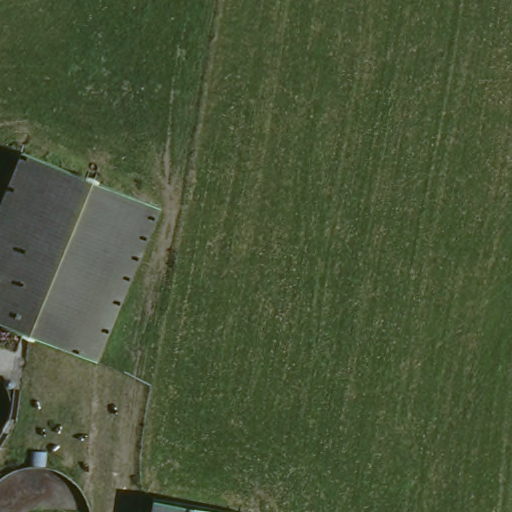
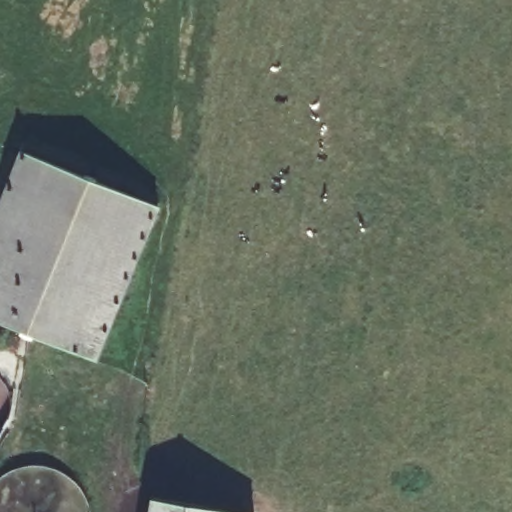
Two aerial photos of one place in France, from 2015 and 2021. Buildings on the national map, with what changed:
unchanged [(0,315),(0,210),(26,145),(143,192),(161,200),(135,265),(104,354),(0,315)]
unchanged [(257,512),(153,512),(156,494),(258,511),(257,512)]

